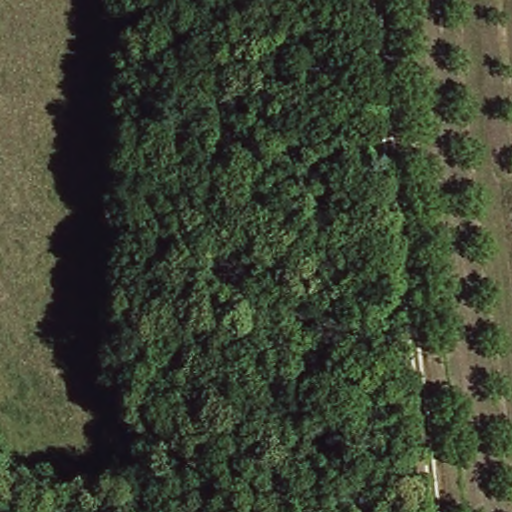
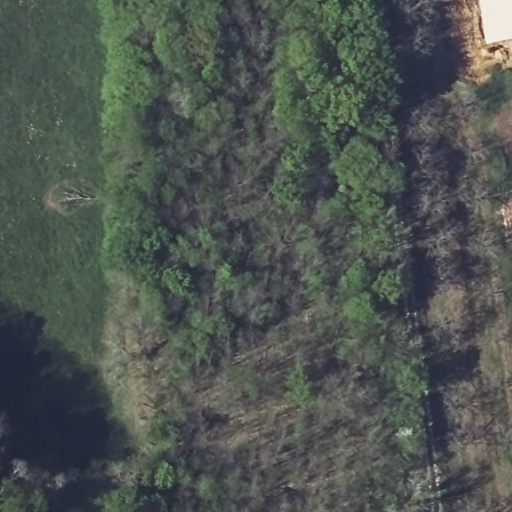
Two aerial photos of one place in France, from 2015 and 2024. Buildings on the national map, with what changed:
new [(485,46),(477,0),(512,0),(512,42),(485,46)]

